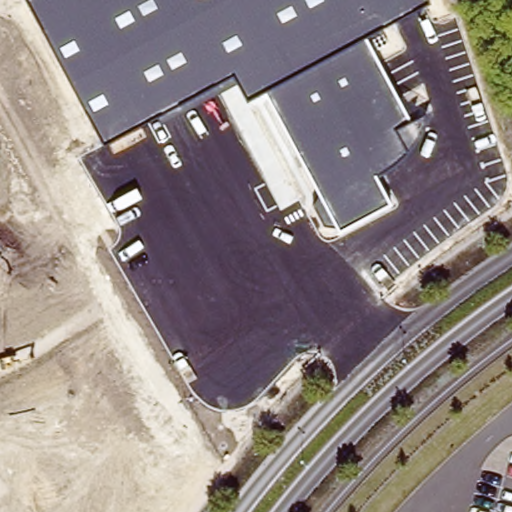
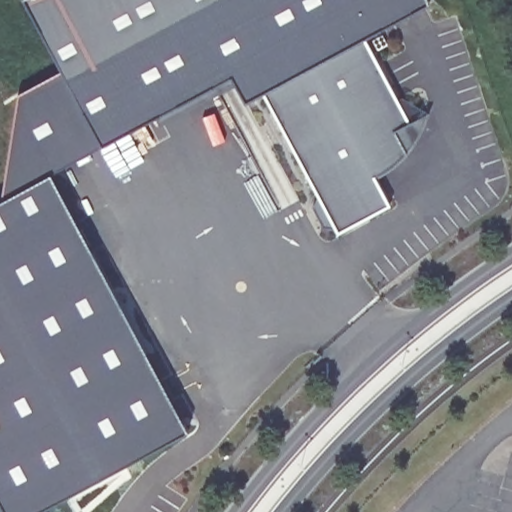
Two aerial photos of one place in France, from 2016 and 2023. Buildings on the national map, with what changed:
unchanged [(365,35),(410,121),(430,112),(422,133),(410,150),(401,158),(388,169),(376,176),(390,203),(338,230),(335,225),(325,225),(315,205),(321,197),(265,89),(247,99),(238,81),(163,122),(157,112),(103,141),(26,0),(428,0),(428,2),(365,35)]
new [(191,429),(37,511),(38,512),(0,512),(0,199),(5,196),(13,96),(61,70),(101,144),(53,170),(191,429)]

